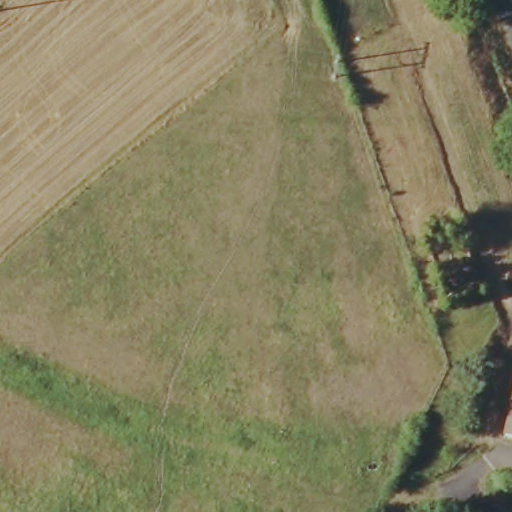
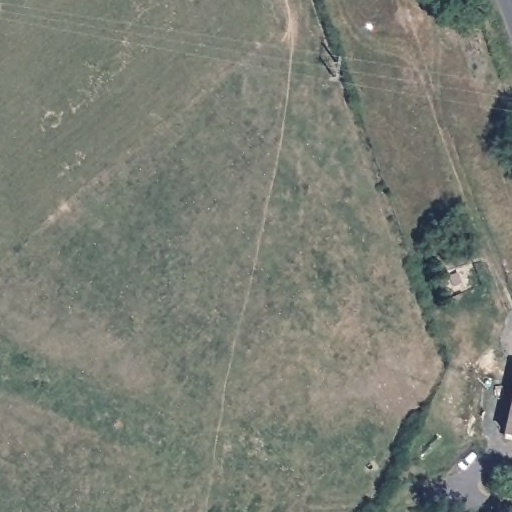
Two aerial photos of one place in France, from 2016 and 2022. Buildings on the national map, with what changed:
unchanged [(512,390),(512,438),(500,435),(512,390)]

